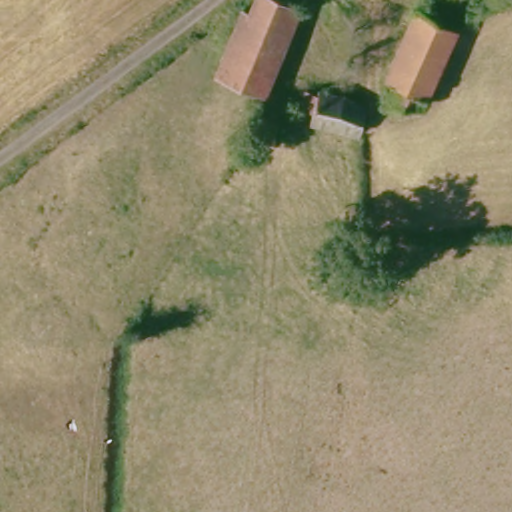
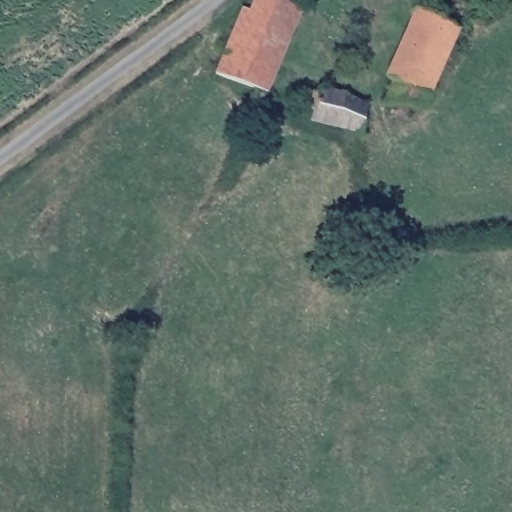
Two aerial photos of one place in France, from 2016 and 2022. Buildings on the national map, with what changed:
unchanged [(223,79),(245,26),(250,29),(261,0),(280,0),(305,9),(269,96),(223,79)]
unchanged [(433,101),(395,104),(391,101),(400,86),(392,82),(423,8),(462,25),(433,101)]
unchanged [(320,89),(336,95),(338,92),(367,102),(380,118),(370,138),(326,123),(330,114),(313,109),(315,105),(312,104),(320,89)]

